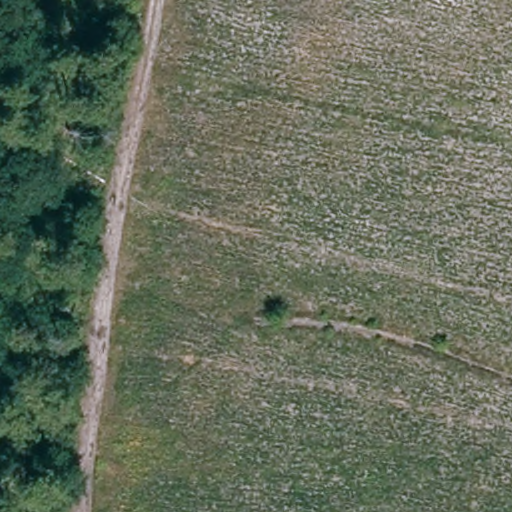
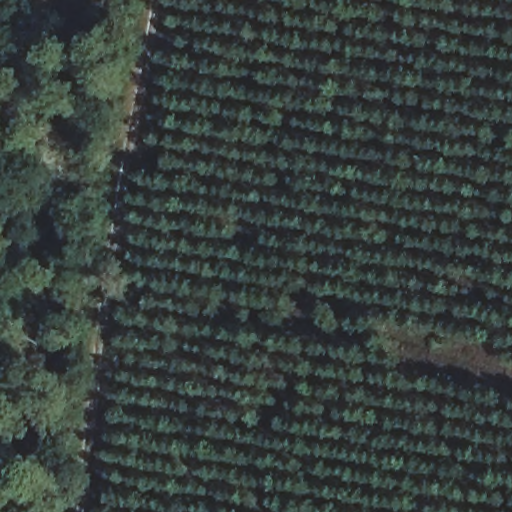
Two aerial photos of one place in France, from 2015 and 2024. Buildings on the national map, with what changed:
[]

